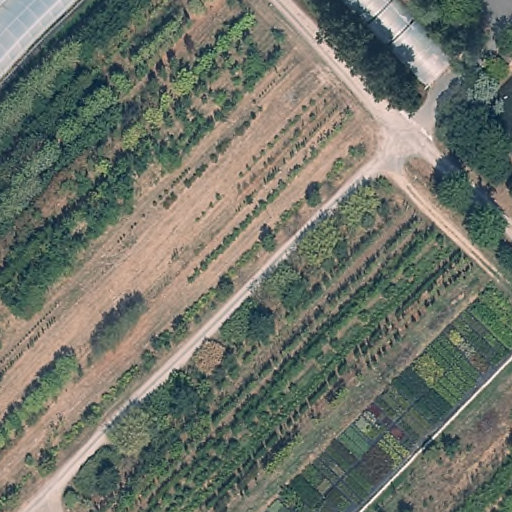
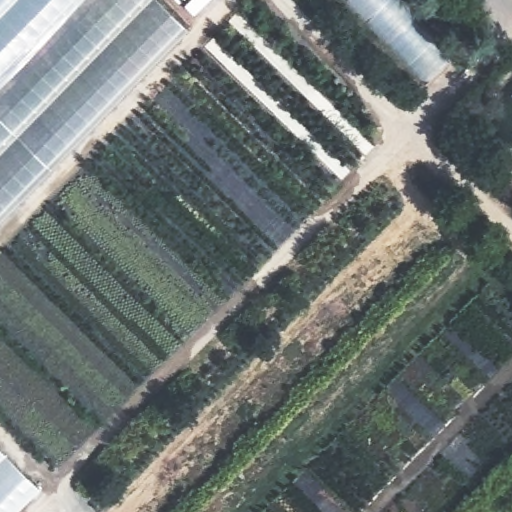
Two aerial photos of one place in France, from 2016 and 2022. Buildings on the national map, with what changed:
unchanged [(0,86),(0,0),(84,0),(0,86)]
new [(185,25),(0,215),(0,86),(84,0),(157,0),(185,25)]
unchanged [(341,0),(426,0),(473,46),(426,87),(341,0)]

